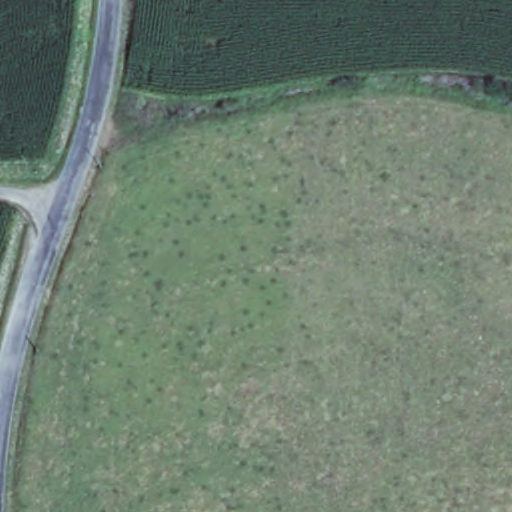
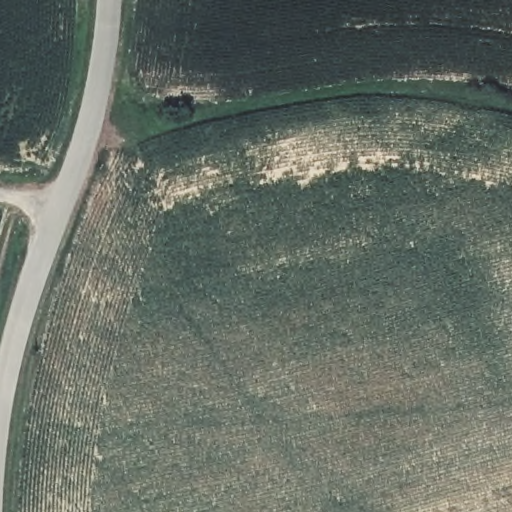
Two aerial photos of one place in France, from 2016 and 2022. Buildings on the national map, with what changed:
[]

